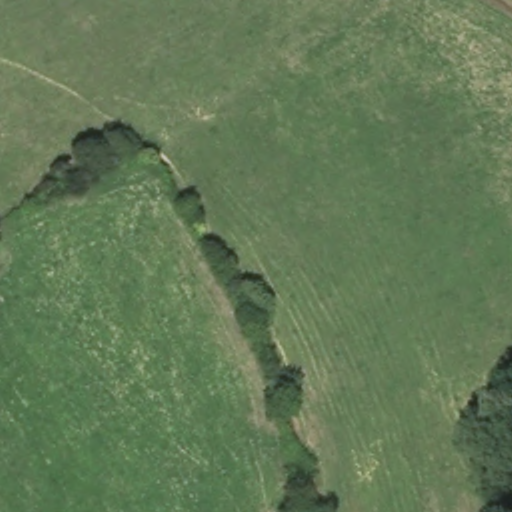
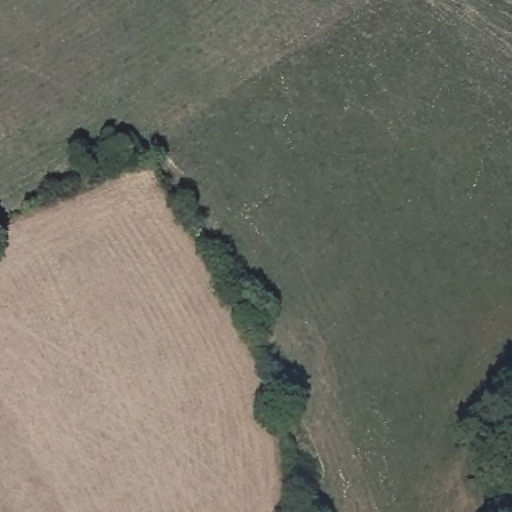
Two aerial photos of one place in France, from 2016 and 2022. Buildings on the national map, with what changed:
[]

